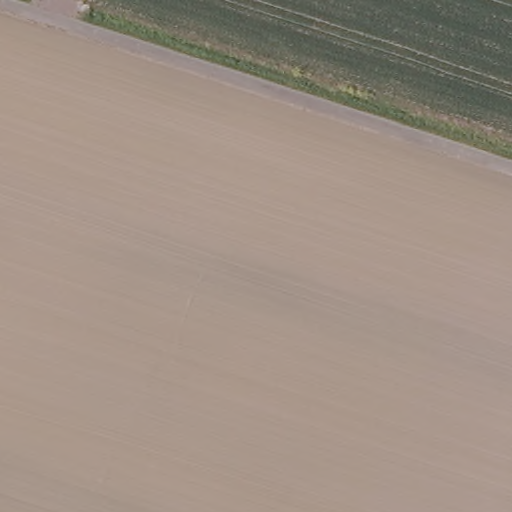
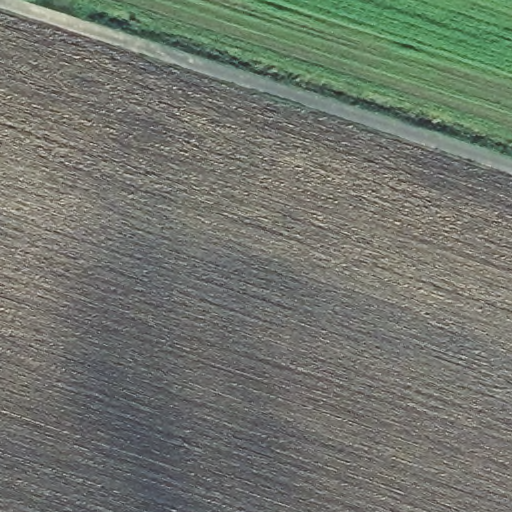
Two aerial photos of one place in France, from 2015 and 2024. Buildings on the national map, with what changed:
[]

